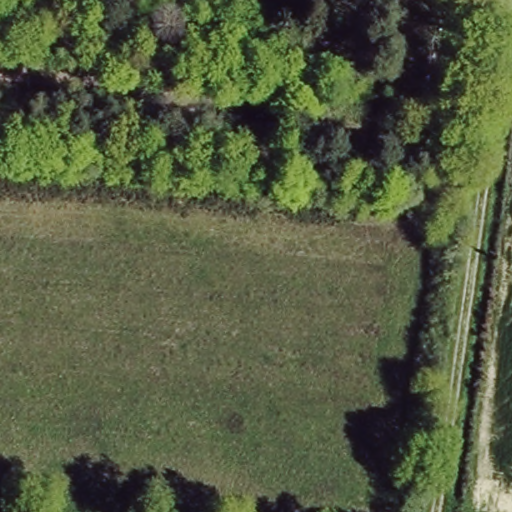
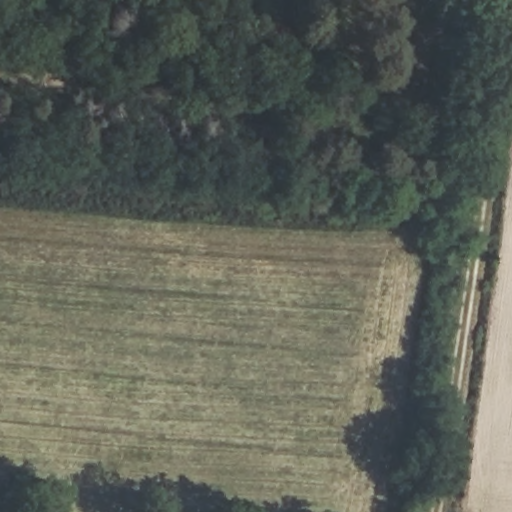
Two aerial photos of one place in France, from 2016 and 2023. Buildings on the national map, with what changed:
[]

